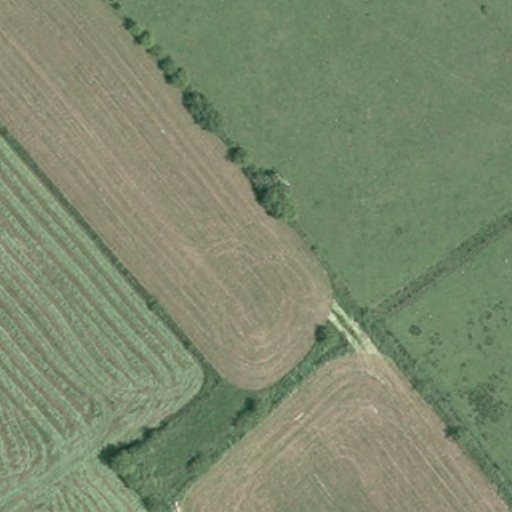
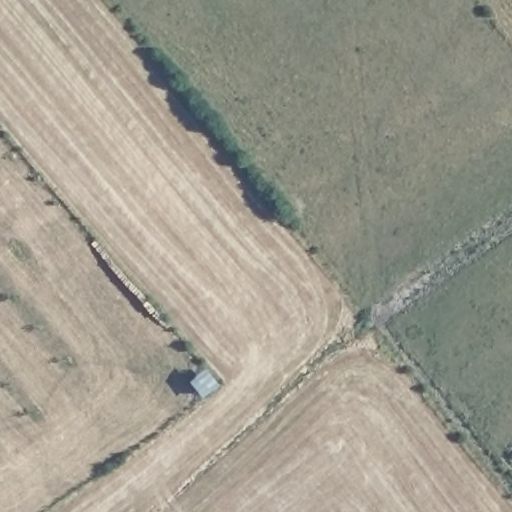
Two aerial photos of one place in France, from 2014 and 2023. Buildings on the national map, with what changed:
[]

